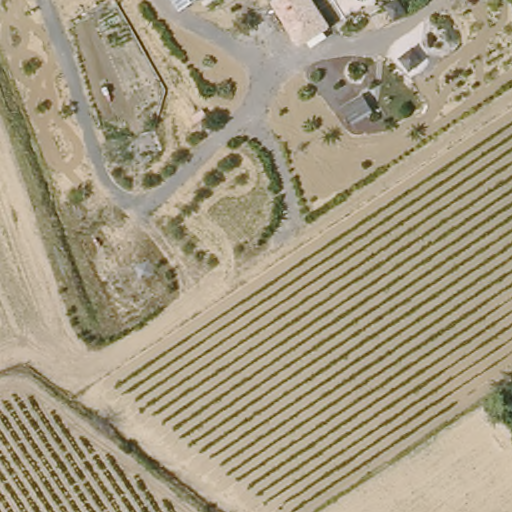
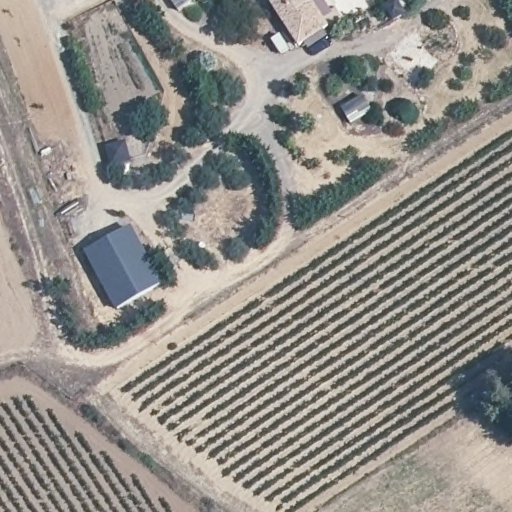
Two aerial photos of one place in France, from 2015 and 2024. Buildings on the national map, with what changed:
unchanged [(331,25),(300,46),(272,2),(275,0),(313,0),(331,25)]
new [(132,227),(163,282),(119,308),(88,253),(132,227)]

